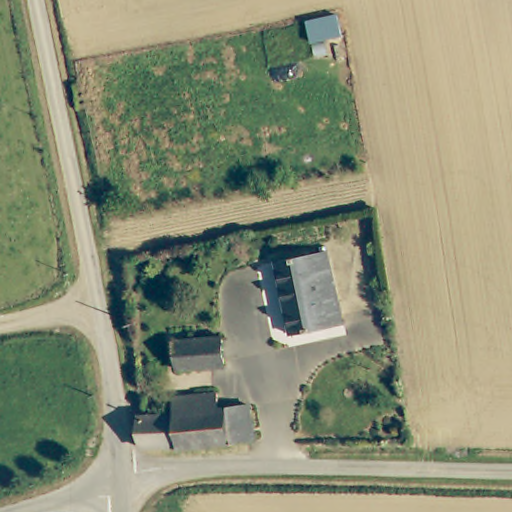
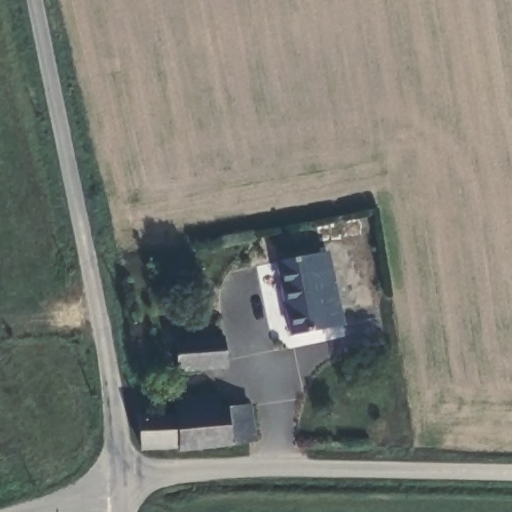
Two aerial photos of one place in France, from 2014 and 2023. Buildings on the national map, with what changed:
demolished [(348,36),(311,44),(304,21),(343,12),(348,36)]
unchanged [(340,327),(287,337),(274,262),(329,251),(340,327)]
unchanged [(225,368),(179,372),(175,345),(223,340),(225,368)]
unchanged [(220,407),(250,405),(255,442),(179,450),(142,450),(138,419),(176,415),(174,397),(217,391),(220,407)]

